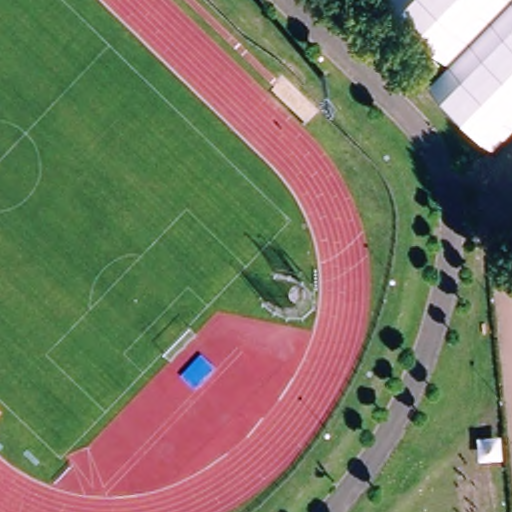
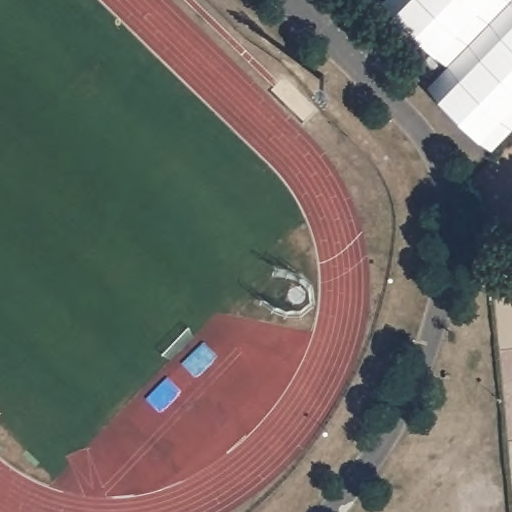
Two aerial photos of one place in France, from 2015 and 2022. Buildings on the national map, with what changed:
unchanged [(388,0),(512,0),(512,1),(446,70),(381,7),(388,0)]
unchanged [(512,1),(512,128),(486,155),(424,91),(446,70),(512,1)]

